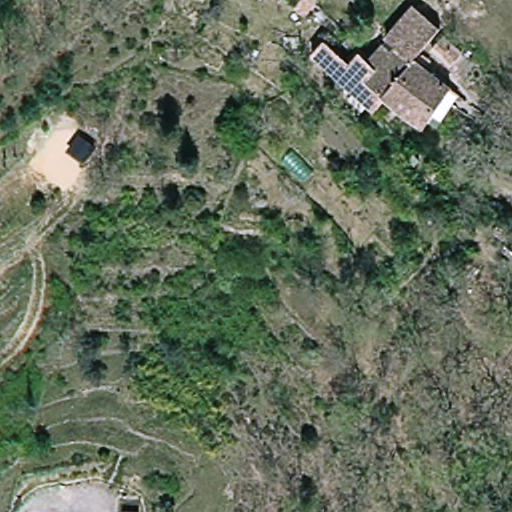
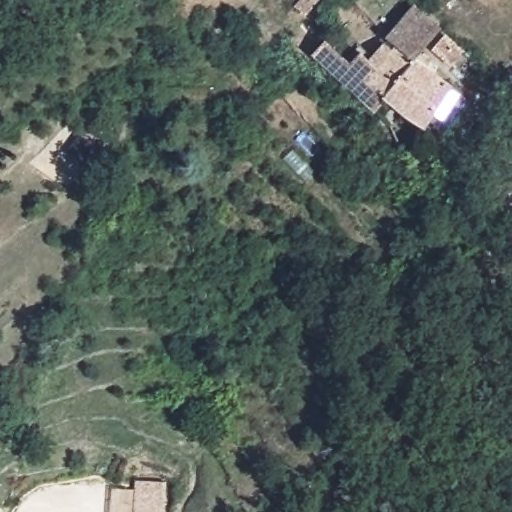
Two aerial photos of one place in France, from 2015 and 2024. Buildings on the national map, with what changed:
unchanged [(359,57),(371,43),(378,50),(399,28),(424,1),(451,24),(426,54),(389,86),(359,57)]
unchanged [(473,49),(461,63),(443,46),(455,33),(473,49)]
unchanged [(440,113),(433,107),(420,122),(389,86),(426,54),(455,81),(462,88),(440,113)]
unchanged [(368,105),(342,75),(359,57),(389,86),(368,105)]
new [(164,512),(133,512),(135,481),(167,482),(164,512)]

